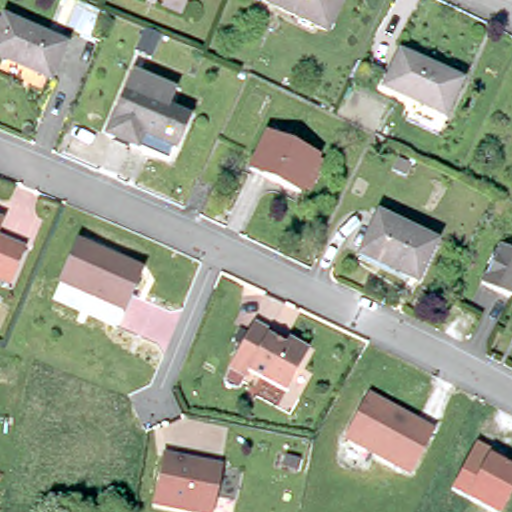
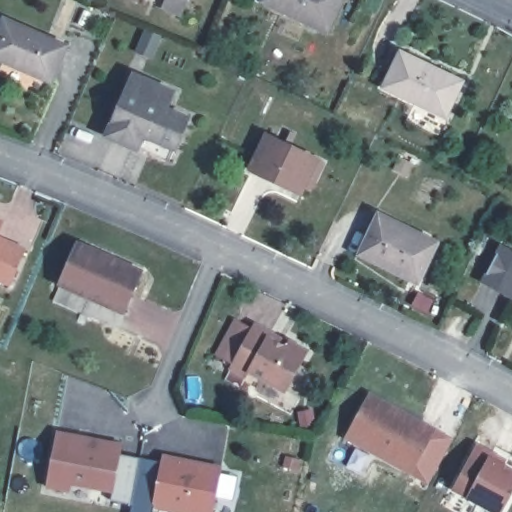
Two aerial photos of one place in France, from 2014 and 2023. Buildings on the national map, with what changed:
unchanged [(187,9),(169,2),(169,0),(191,0),(187,9)]
unchanged [(327,31),(263,0),(342,0),(327,31)]
unchanged [(50,80),(0,58),(0,26),(4,18),(66,44),(50,80)]
unchanged [(462,80),(445,116),(385,86),(401,51),(462,80)]
unchanged [(133,148),(103,134),(129,74),(169,91),(162,108),(183,117),(169,148),(163,162),(133,148)]
unchanged [(301,191),(251,167),(267,134),(317,159),(301,191)]
unchanged [(437,241),(417,281),(360,253),(380,213),(437,241)]
unchanged [(5,224),(0,236),(0,222),(5,224)]
unchanged [(27,251),(13,286),(0,281),(0,240),(27,251)]
unchanged [(125,308),(62,279),(80,240),(143,268),(125,308)]
unchanged [(500,245),(512,252),(512,295),(482,279),(500,245)]
unchanged [(310,350),(288,389),(251,368),(247,373),(231,365),(256,321),(272,331),(289,341),(290,338),(310,350)]
unchanged [(396,407),(397,405),(425,421),(424,423),(437,430),(438,428),(439,429),(415,472),(349,435),(372,394),(396,407)]
new [(120,452),(141,457),(132,503),(111,499),(113,491),(71,484),(70,492),(46,488),(56,430),(122,441),(120,452)]
unchanged [(507,468),(512,471),(512,501),(506,512),(492,512),(455,491),(480,447),(495,455),(509,463),(507,468)]
unchanged [(179,461),(200,465),(201,461),(222,466),(212,512),(196,512),(153,503),(163,453),(180,457),(179,461)]

